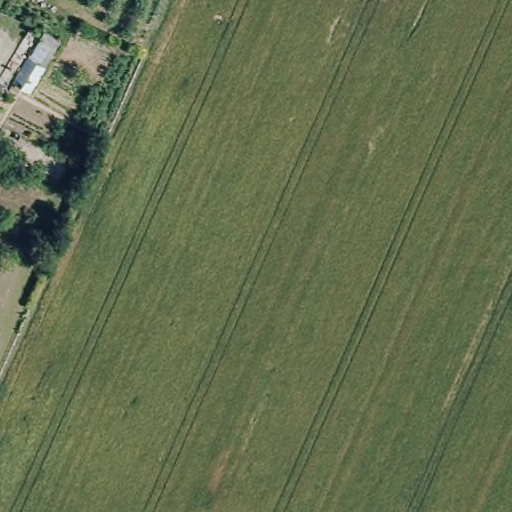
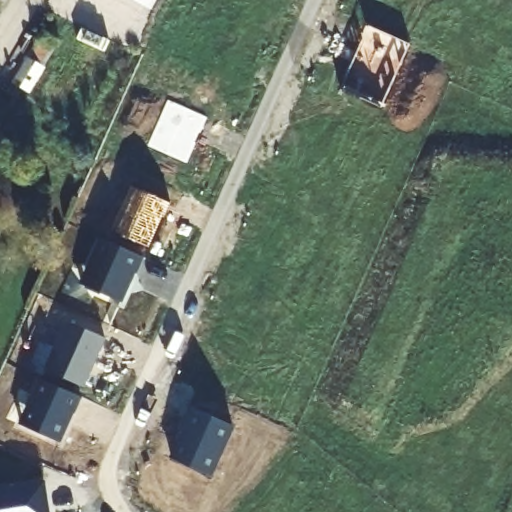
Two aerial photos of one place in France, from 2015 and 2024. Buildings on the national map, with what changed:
new [(410,45),(382,106),(341,87),(368,26),(410,45)]
new [(168,100),(207,117),(187,164),(147,146),(168,100)]
new [(170,202),(172,204),(165,217),(163,217),(149,247),(111,230),(132,186),(170,202)]
new [(80,282),(100,237),(144,256),(122,301),(80,282)]
new [(45,370),(67,321),(105,338),(85,387),(45,370)]
new [(39,377),(82,396),(61,443),(18,423),(39,377)]
new [(168,459),(192,406),(235,425),(212,478),(168,459)]
new [(0,487),(45,480),(50,512),(0,512),(0,487)]

